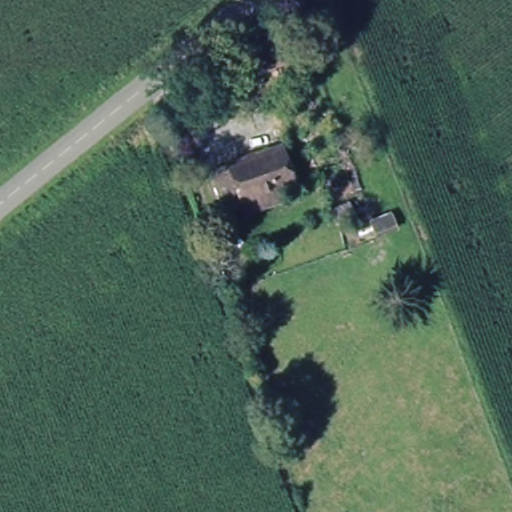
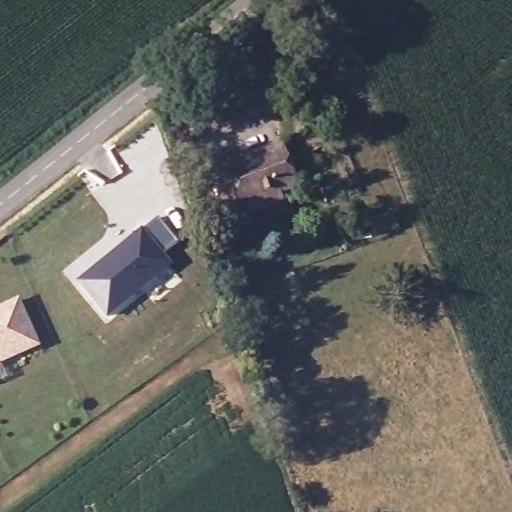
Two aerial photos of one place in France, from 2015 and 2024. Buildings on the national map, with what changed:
unchanged [(245,221),(239,205),(224,211),(214,172),(281,148),(294,187),(279,193),(283,207),(245,221)]
new [(121,242),(156,217),(177,243),(164,254),(174,268),(106,320),(76,281),(121,242)]
new [(0,313),(0,309),(16,302),(36,346),(0,363),(0,314),(1,314),(0,313)]

